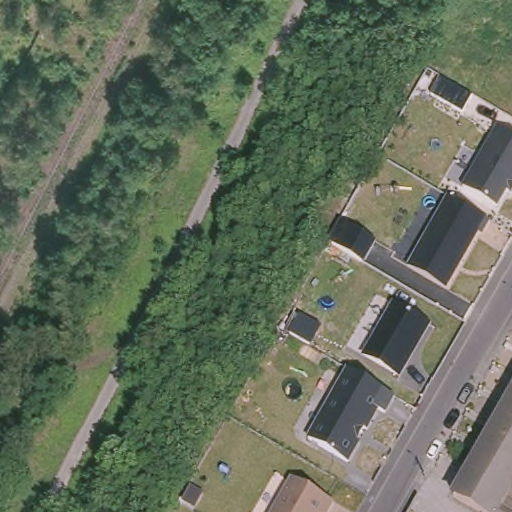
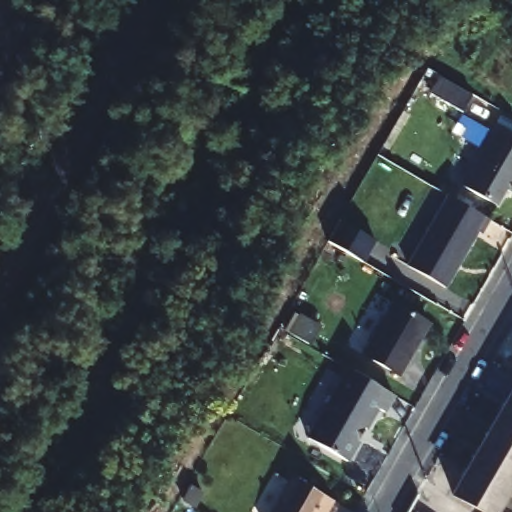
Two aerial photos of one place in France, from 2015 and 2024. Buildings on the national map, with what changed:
unchanged [(444,79),(476,97),(466,115),(434,95),(444,79)]
unchanged [(497,205),(467,188),(501,127),(512,134),(512,189),(511,192),(506,189),(497,205)]
unchanged [(489,219),(482,233),(478,231),(445,287),(409,266),(449,196),(489,219)]
unchanged [(376,240),(364,262),(334,244),(346,222),(376,240)]
unchanged [(430,323),(419,341),(417,340),(412,348),(414,350),(400,375),(364,355),(394,302),(430,323)]
unchanged [(387,390),(394,395),(384,411),(378,408),(366,428),(364,427),(356,440),(359,441),(347,461),(308,438),(349,368),(387,390)]
unchanged [(504,399),(512,385),(512,408),(502,402),(504,399)]
unchanged [(490,422),(502,402),(512,408),(512,438),(489,425),(490,422)]
unchanged [(512,469),(476,448),(477,445),(489,425),(512,438),(512,469)]
unchanged [(512,500),(501,493),(462,471),(464,468),(476,448),(512,469),(512,474),(508,483),(512,486),(512,500)]
unchanged [(495,503),(510,512),(479,512),(449,495),(462,471),(501,493),(495,503)]
unchanged [(333,500),(326,512),(272,512),(292,477),(333,500)]

